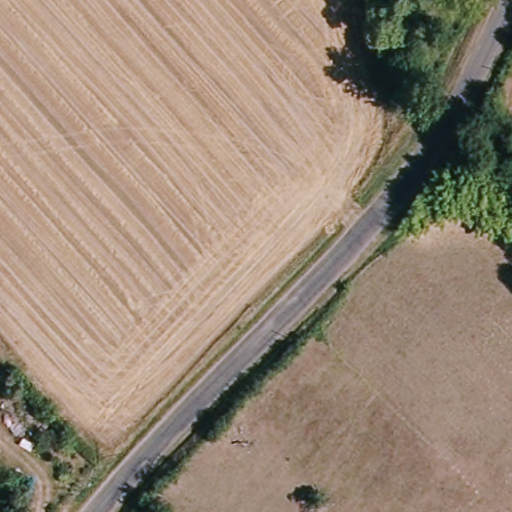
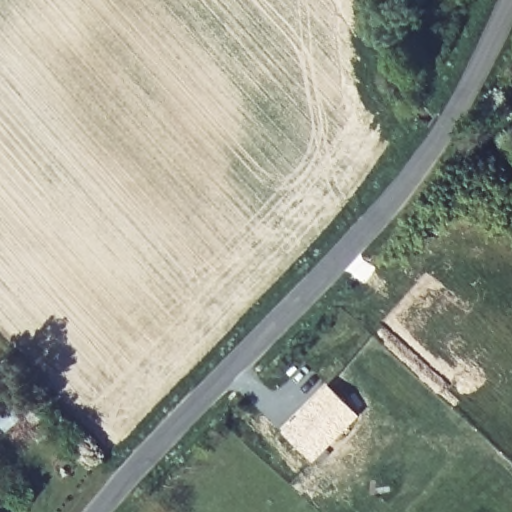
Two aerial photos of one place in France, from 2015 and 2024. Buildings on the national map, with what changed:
new [(327,384),(358,415),(310,461),(280,430),(327,384)]

